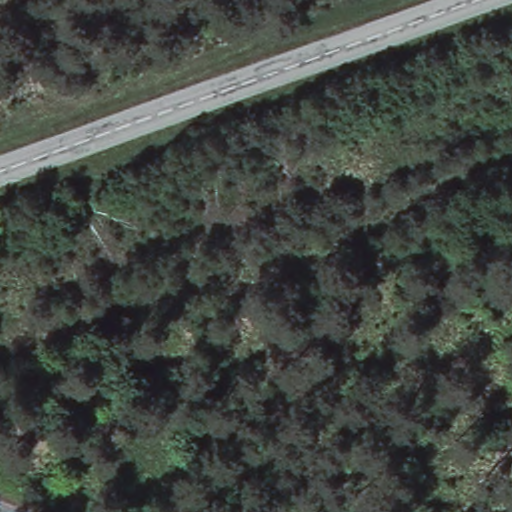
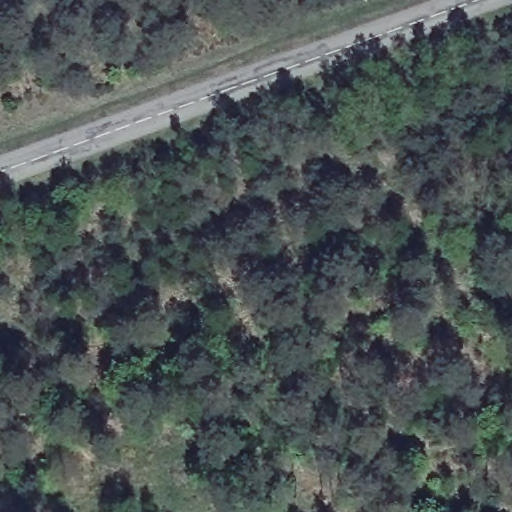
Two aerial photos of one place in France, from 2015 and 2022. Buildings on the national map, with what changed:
[]

